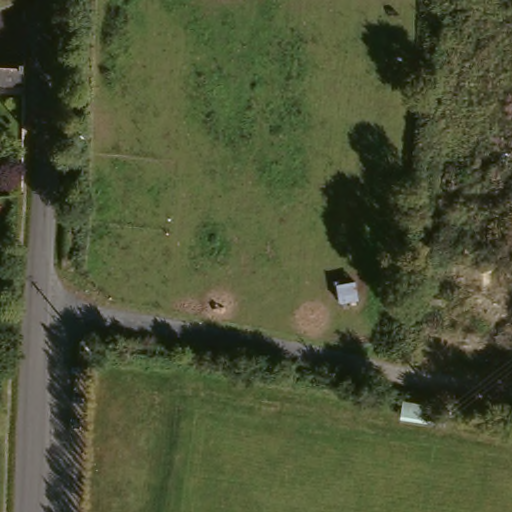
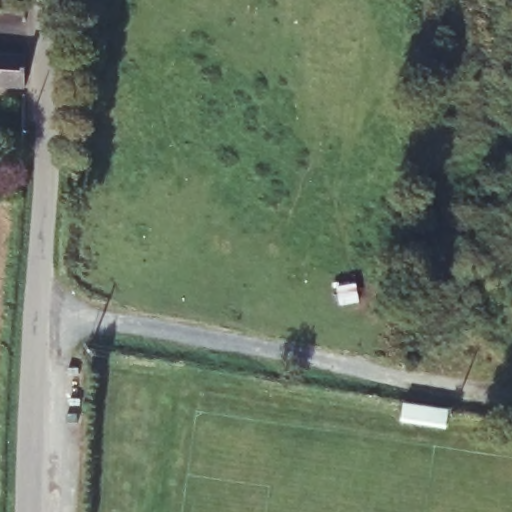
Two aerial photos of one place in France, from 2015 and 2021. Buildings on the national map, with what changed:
unchanged [(24,86),(0,85),(0,52),(24,53),(24,86)]
unchanged [(406,400),(448,407),(446,423),(403,415),(406,400)]

